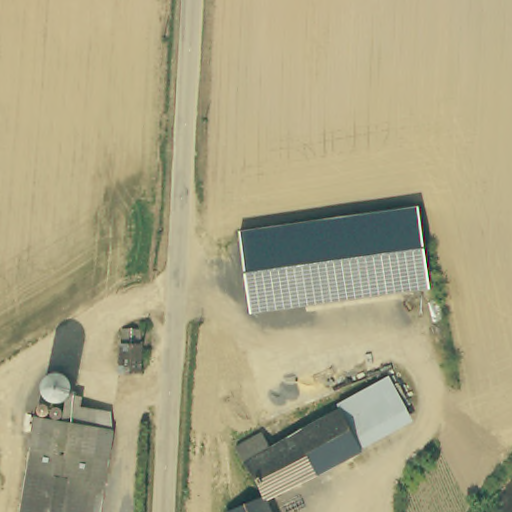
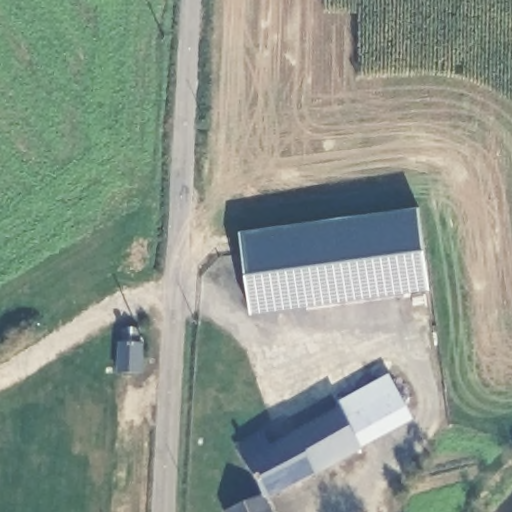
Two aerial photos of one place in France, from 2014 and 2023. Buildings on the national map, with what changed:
unchanged [(237,231),(416,206),(427,286),(248,311),(237,231)]
unchanged [(143,382),(114,382),(115,344),(123,344),(123,330),(143,330),(143,382)]
unchanged [(263,427),(273,440),(345,405),(342,399),(392,373),(414,419),(377,437),(366,443),(264,498),(238,437),(263,427)]
demolished [(66,428),(68,412),(108,419),(109,436),(97,512),(24,512),(38,425),(66,428)]
unchanged [(270,512),(233,512),(264,498),(270,512)]

